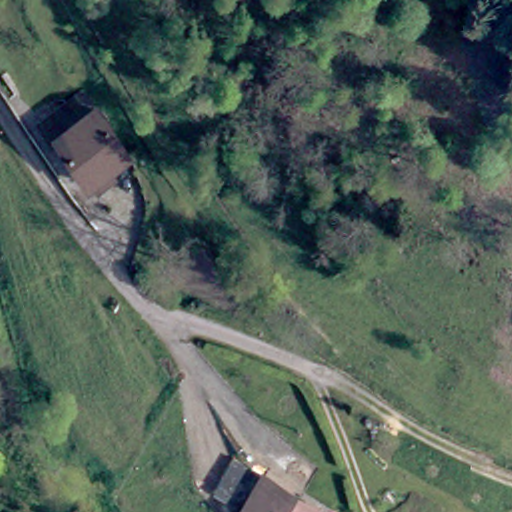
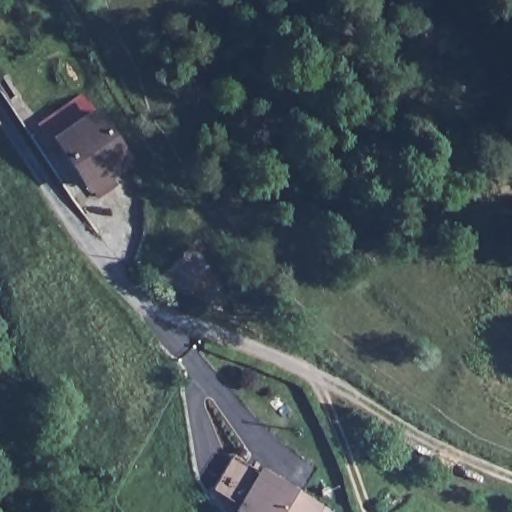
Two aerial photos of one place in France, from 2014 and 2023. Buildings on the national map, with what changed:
unchanged [(57,141),(51,144),(40,127),(86,97),(97,114),(57,141)]
unchanged [(97,197),(90,187),(88,188),(57,141),(97,114),(128,162),(107,176),(114,187),(97,197)]
unchanged [(262,467),(314,500),(307,512),(235,512),(242,500),(262,467)]

